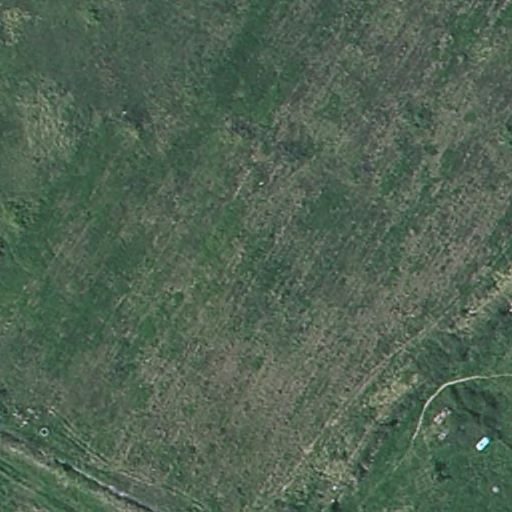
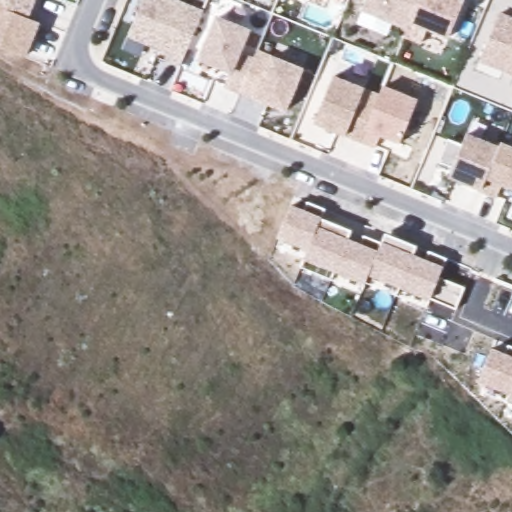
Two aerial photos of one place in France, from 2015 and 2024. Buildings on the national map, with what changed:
new [(28,15),(0,4),(0,0),(35,0),(28,15)]
new [(139,0),(189,0),(202,5),(180,57),(164,50),(166,45),(127,29),(139,0)]
new [(362,0),(414,0),(404,24),(360,5),(362,0)]
new [(404,24),(414,0),(460,0),(446,34),(425,24),(419,39),(400,31),(404,24)]
new [(28,15),(33,17),(19,52),(0,44),(0,4),(28,15)]
new [(512,6),(512,61),(492,52),(511,6),(512,6)]
new [(216,12),(248,25),(238,48),(253,54),(240,86),(224,80),(230,66),(199,54),(216,12)]
new [(253,54),(257,45),(302,64),(285,105),(240,86),(253,54)]
new [(332,71),(379,90),(360,135),(314,116),(332,71)]
new [(379,90),(383,81),(417,95),(399,137),(380,129),(375,141),(360,135),(379,90)]
new [(465,129),(495,144),(480,184),(448,170),(465,129)]
new [(495,144),(497,140),(512,146),(512,182),(502,177),(495,191),(480,185),(480,184),(495,144)]
new [(430,297),(429,300),(369,275),(365,284),(304,260),(308,250),(277,238),(292,204),(303,208),(306,201),(324,209),(321,217),(351,230),(349,237),(360,242),(364,235),(383,242),(387,234),(416,246),(412,254),(424,258),(430,251),(447,257),(444,266),(440,278),(465,287),(457,309),(430,297)]
new [(509,392),(480,380),(492,346),(506,352),(510,345),(512,346),(512,402),(505,400),(509,392)]

